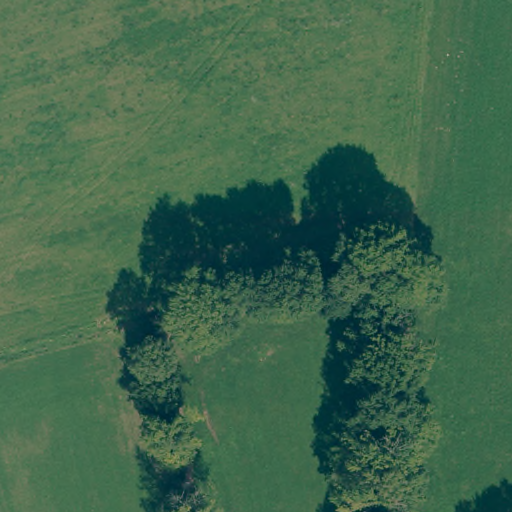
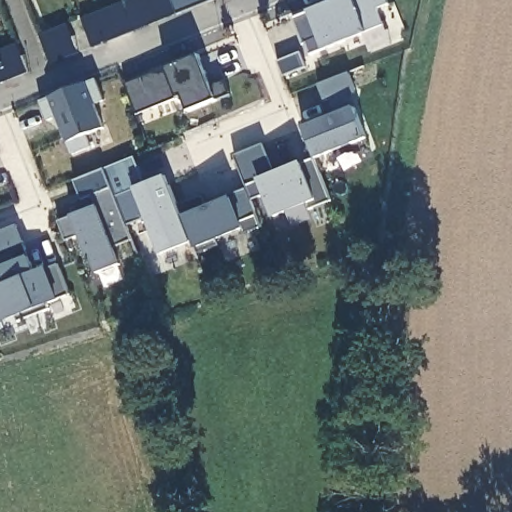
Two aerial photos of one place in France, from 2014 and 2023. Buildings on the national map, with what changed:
new [(170,0),(215,0),(175,14),(170,0)]
new [(340,0),(387,0),(390,5),(377,9),(385,26),(366,34),(325,50),(310,55),(306,43),(302,44),(292,19),(308,13),(340,0)]
new [(68,24),(80,54),(65,59),(51,64),(40,35),(54,30),(68,24)]
new [(167,69),(200,56),(213,88),(225,83),(231,96),(217,100),(189,111),(184,96),(138,114),(126,85),(167,69)]
new [(358,94),(350,98),(354,106),(367,139),(316,159),(302,126),(334,114),(319,84),(348,74),(358,94)]
new [(96,79),(105,100),(96,104),(105,128),(87,135),(92,146),(72,154),(58,117),(49,120),(41,101),(96,79)]
new [(262,146),(272,173),(300,163),(316,158),(333,203),(309,214),(306,205),(273,218),(265,195),(250,199),(246,189),(235,156),(262,146)]
new [(105,170),(135,159),(145,184),(165,176),(177,205),(192,244),(161,255),(146,218),(127,225),(134,240),(115,249),(121,265),(99,274),(94,259),(87,257),(79,235),(66,240),(59,222),(70,217),(97,208),(92,197),(81,200),(75,182),(105,170)]
new [(203,195),(208,208),(207,204),(228,196),(246,189),(250,199),(261,228),(244,235),(241,230),(216,240),(219,246),(196,255),(192,244),(177,205),(203,195)]
new [(31,262),(36,273),(59,264),(71,294),(48,304),(50,309),(19,322),(16,316),(4,321),(0,311),(0,287),(4,285),(0,275),(0,232),(17,225),(27,249),(31,262)]

